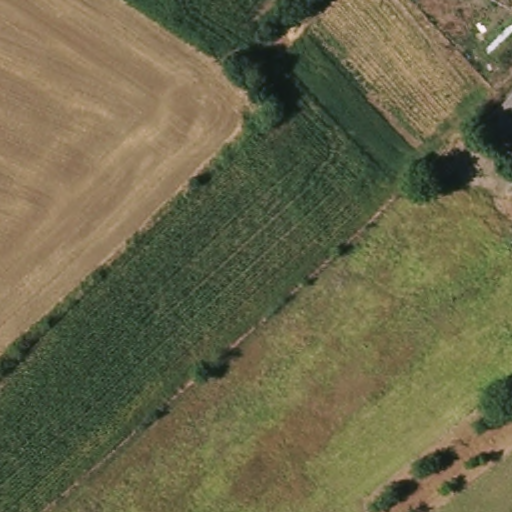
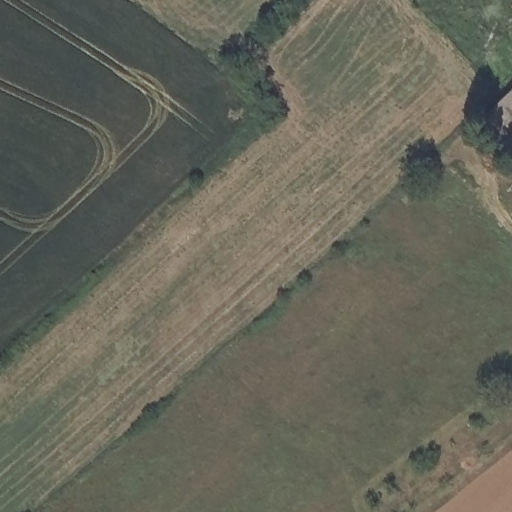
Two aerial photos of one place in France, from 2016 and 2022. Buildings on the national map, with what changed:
unchanged [(512,89),(512,151),(482,118),(512,89)]

